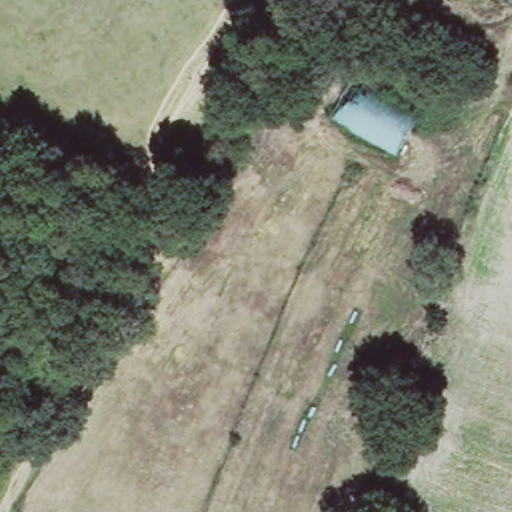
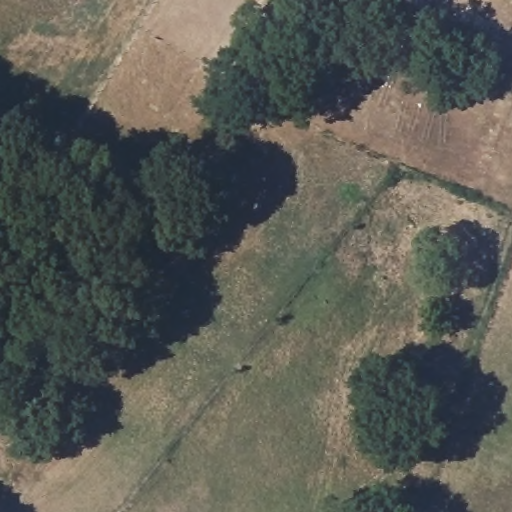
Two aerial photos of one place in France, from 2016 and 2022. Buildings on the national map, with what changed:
unchanged [(421,115),(400,155),(332,120),(351,82),(421,115)]

